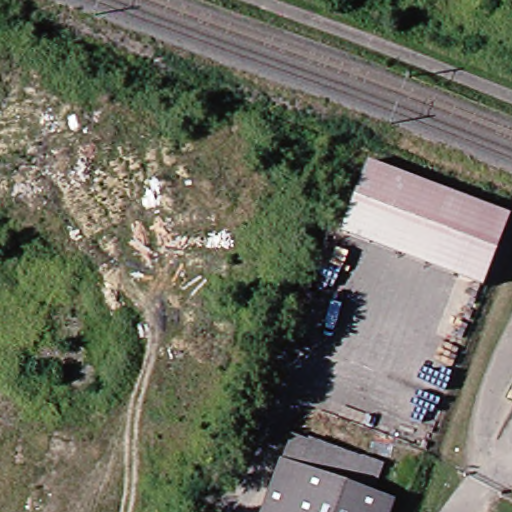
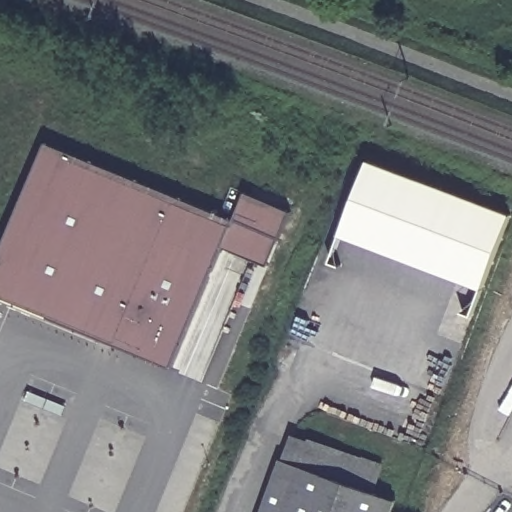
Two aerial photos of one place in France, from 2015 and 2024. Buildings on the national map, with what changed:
new [(0,303),(0,247),(40,147),(229,220),(170,369),(0,303)]
unchanged [(373,160),(512,210),(512,232),(494,284),(347,232),(373,160)]
new [(220,243),(229,220),(235,224),(247,193),(291,211),(269,264),(220,243)]
unchanged [(388,462),(379,492),(288,459),(297,434),(388,462)]
unchanged [(285,458),(288,459),(379,492),(396,497),(390,512),(266,512),(285,458)]

